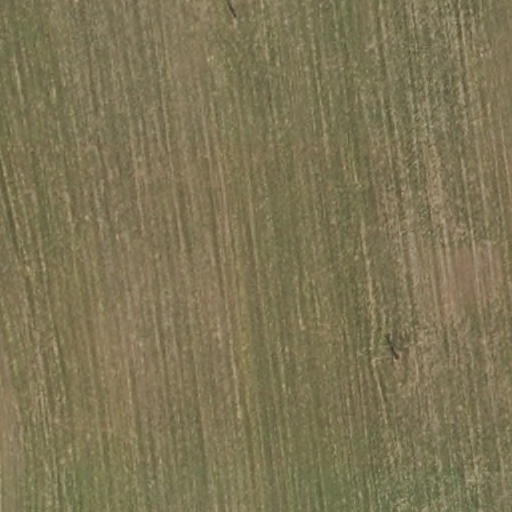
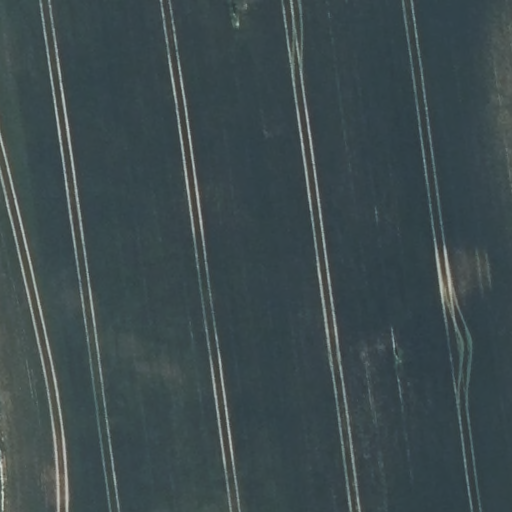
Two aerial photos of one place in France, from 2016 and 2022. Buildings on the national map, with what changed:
[]

